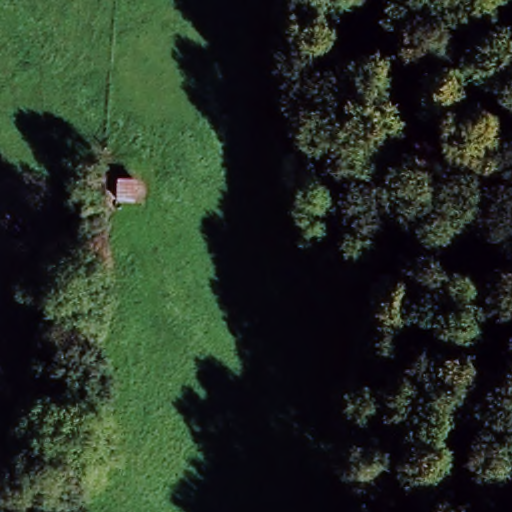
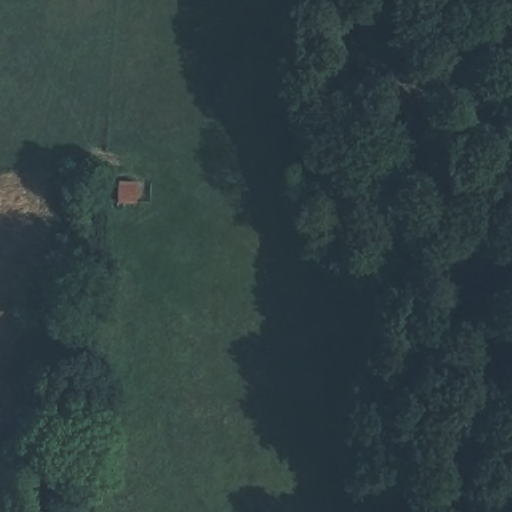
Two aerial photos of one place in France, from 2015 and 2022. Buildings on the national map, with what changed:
unchanged [(114,204),(117,182),(137,183),(139,205),(114,204)]

